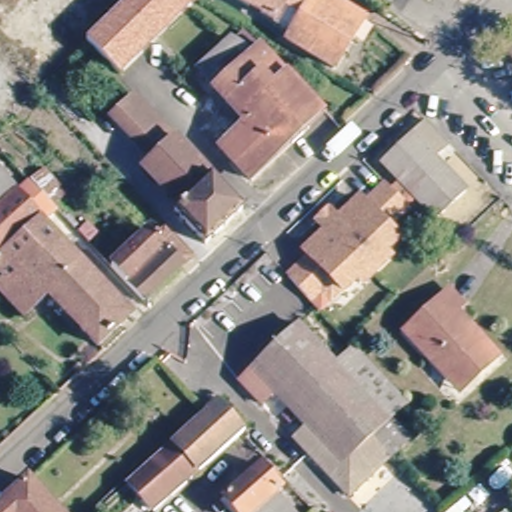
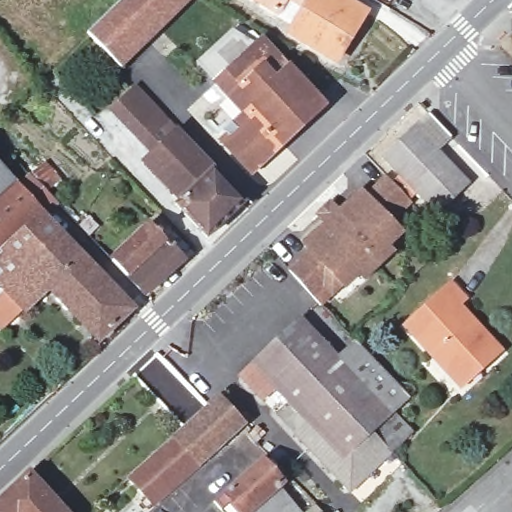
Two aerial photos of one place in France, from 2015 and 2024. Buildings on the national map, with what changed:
unchanged [(86,36),(123,0),(191,0),(119,69),(86,36)]
unchanged [(365,6),(336,55),(289,28),(292,22),(255,0),(355,0),(365,6)]
unchanged [(291,133),(286,127),(248,163),(203,112),(230,87),(198,55),(228,28),(246,34),(254,26),(319,96),(298,116),(303,121),(291,133)]
unchanged [(202,230),(171,197),(174,193),(141,156),(148,149),(108,106),(131,83),(238,196),(202,230)]
unchanged [(451,130),(435,145),(467,177),(438,207),(417,185),(408,193),(393,178),(401,170),(383,149),(428,107),(451,130)]
unchanged [(41,161),(57,178),(46,190),(38,182),(29,173),(41,161)]
unchanged [(16,184),(0,199),(0,167),(16,184)]
unchanged [(408,193),(412,197),(391,217),(402,230),(335,295),(324,282),(319,286),(296,261),(311,247),(307,242),(329,220),(320,211),(331,200),(341,209),(361,187),(368,193),(389,173),(393,178),(408,193)]
unchanged [(0,255),(0,199),(16,184),(27,195),(44,213),(42,215),(0,255)]
unchanged [(0,283),(0,255),(42,215),(56,232),(0,283)]
unchanged [(110,257),(151,220),(156,226),(165,218),(191,244),(144,292),(110,257)]
unchanged [(94,341),(77,321),(81,319),(57,293),(32,317),(23,307),(5,289),(0,283),(56,232),(59,235),(88,265),(114,293),(129,310),(117,320),(94,341)]
unchanged [(430,349),(404,320),(443,286),(498,346),(478,364),(461,382),(430,349)]
unchanged [(409,393),(394,407),(374,426),(372,429),(387,445),(347,483),(297,428),(309,417),(276,383),(264,394),(242,370),(300,315),(339,356),(358,339),(409,393)]
unchanged [(243,424),(222,443),(205,459),(194,468),(165,439),(201,405),(213,394),(243,424)]
unchanged [(194,468),(150,509),(120,479),(165,439),(194,468)]
unchanged [(302,512),(238,512),(227,501),(216,511),(209,503),(257,462),(304,510),(302,512)]
unchanged [(0,512),(0,506),(27,480),(43,500),(56,512),(0,512)]

